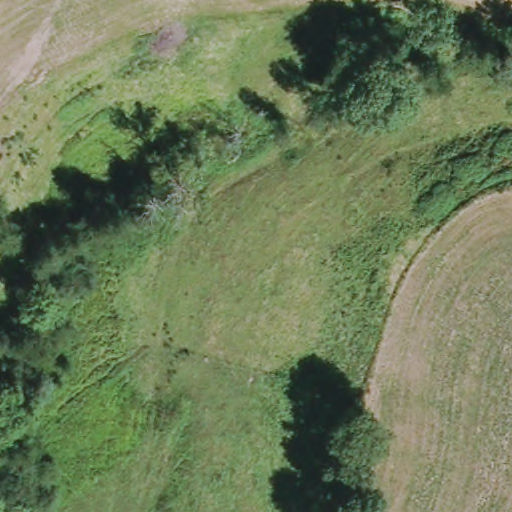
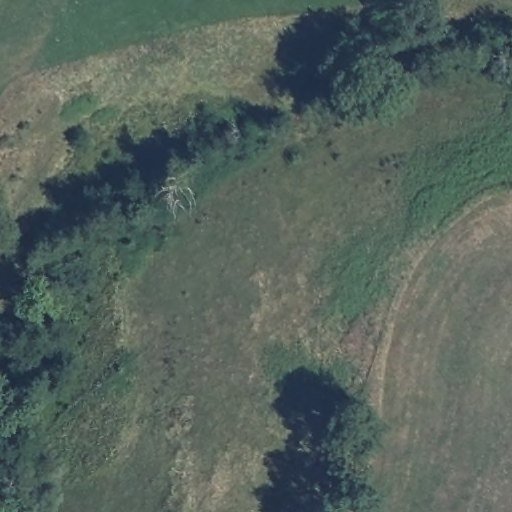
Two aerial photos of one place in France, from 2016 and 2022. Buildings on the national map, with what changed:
[]

